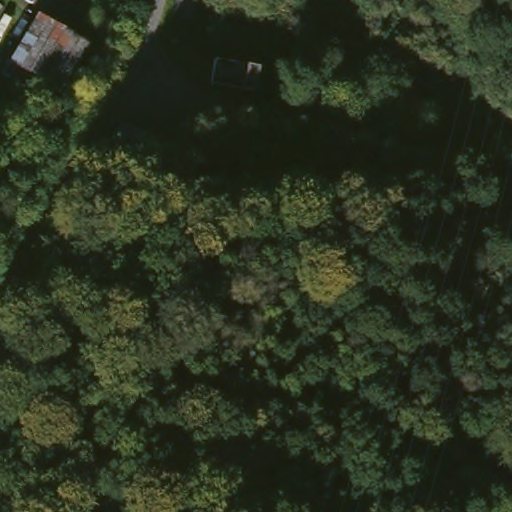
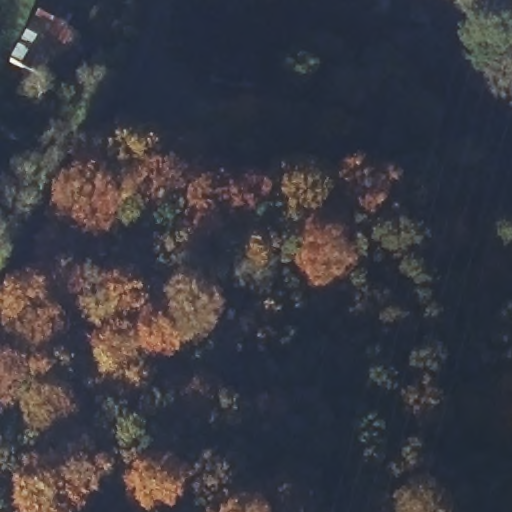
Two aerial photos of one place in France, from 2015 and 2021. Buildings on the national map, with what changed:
unchanged [(64,91),(15,60),(43,13),(73,32),(94,45),(64,91)]
unchanged [(220,81),(225,58),(267,69),(265,79),(261,93),(229,84),(220,81)]
unchanged [(114,148),(125,125),(159,142),(148,165),(114,148)]

